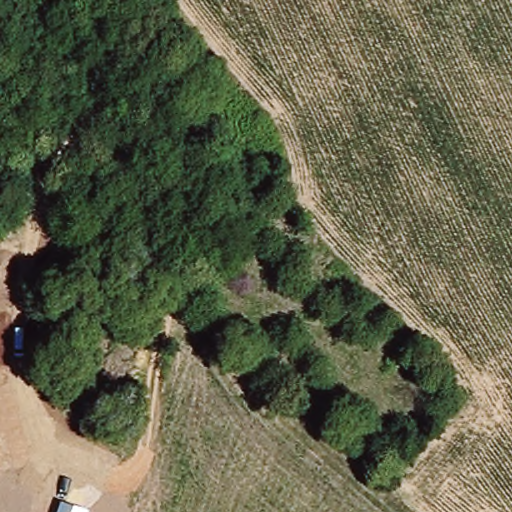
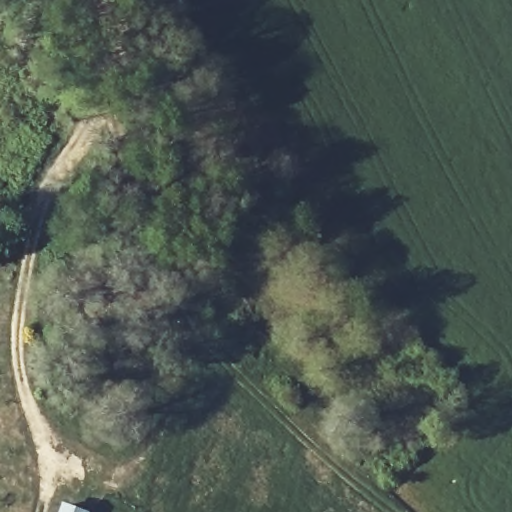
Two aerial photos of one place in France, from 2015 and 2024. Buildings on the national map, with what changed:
unchanged [(63,507),(75,512),(62,512),(63,507)]

